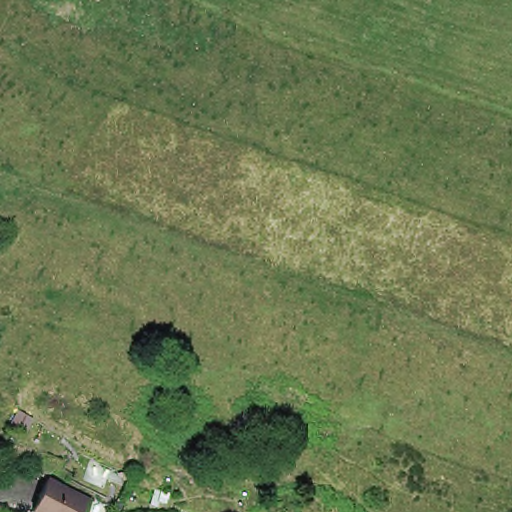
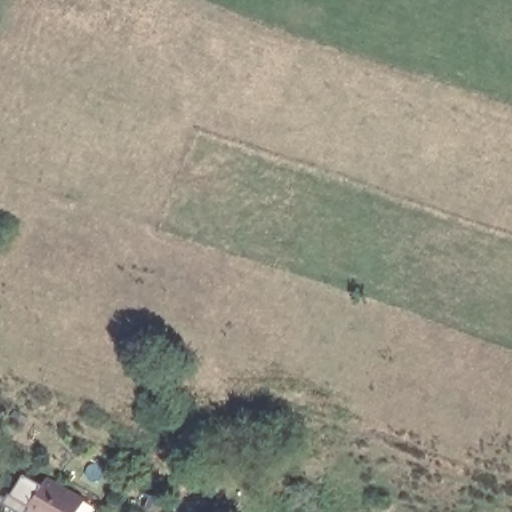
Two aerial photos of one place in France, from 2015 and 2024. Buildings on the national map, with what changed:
unchanged [(36,512),(32,510),(51,478),(89,500),(81,512),(36,512)]

